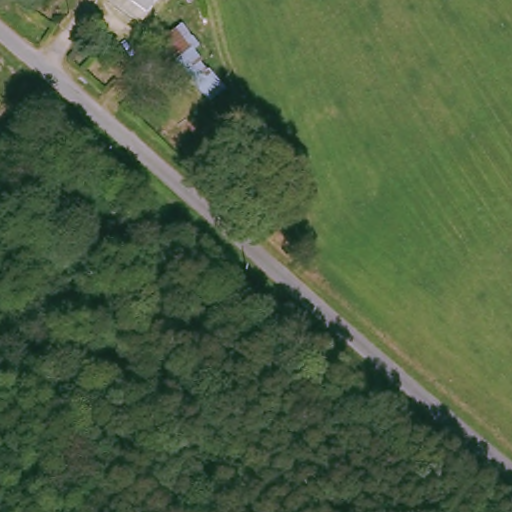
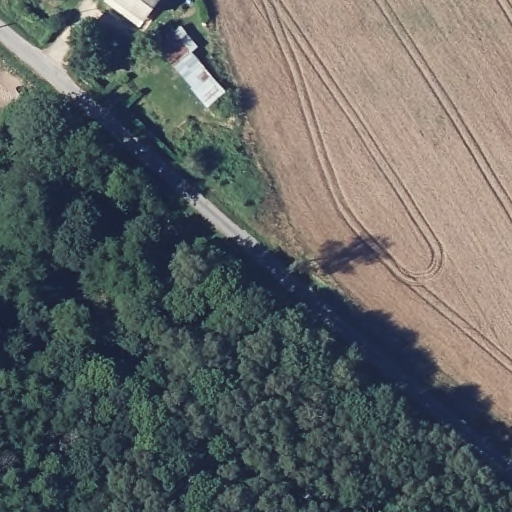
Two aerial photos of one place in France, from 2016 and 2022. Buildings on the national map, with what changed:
unchanged [(144,7),(133,0),(149,0),(144,7)]
unchanged [(154,31),(162,22),(170,29),(177,20),(198,44),(195,49),(227,87),(209,99),(154,31)]

